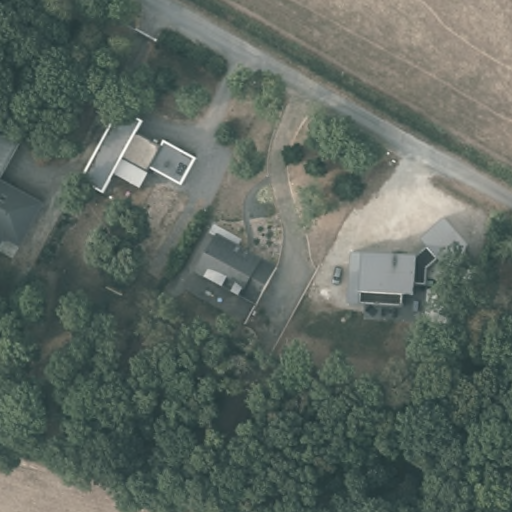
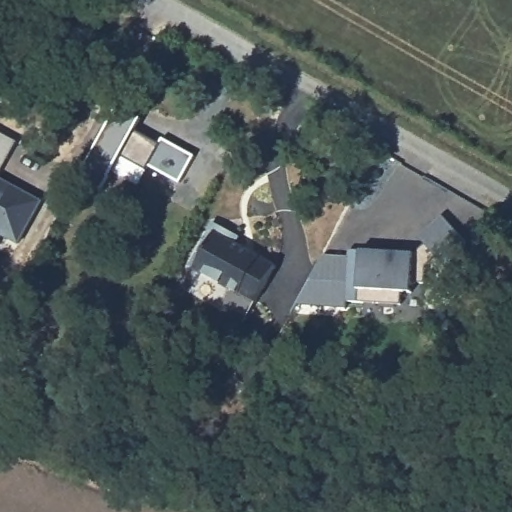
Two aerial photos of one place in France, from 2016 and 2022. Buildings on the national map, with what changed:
unchanged [(144,118),(140,126),(199,155),(182,186),(149,167),(139,187),(116,174),(104,195),(79,182),(118,108),(144,118)]
unchanged [(7,179),(42,199),(21,247),(0,240),(0,128),(24,139),(7,179)]
unchanged [(281,264),(257,305),(183,265),(211,221),(281,264)]
unchanged [(360,256),(363,251),(415,255),(416,307),(348,301),(350,255),(360,256)]
new [(295,306),(322,255),(350,257),(348,301),(348,308),(295,306)]

